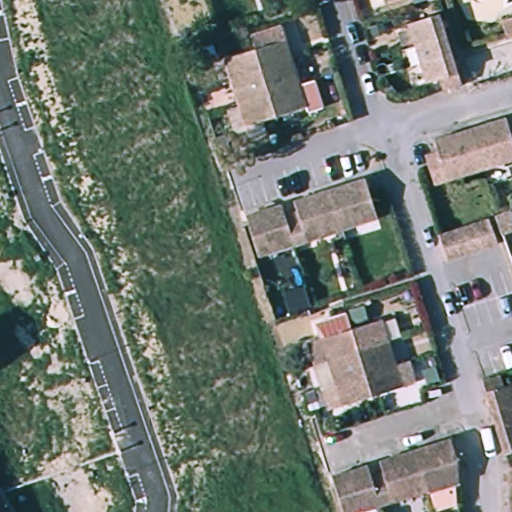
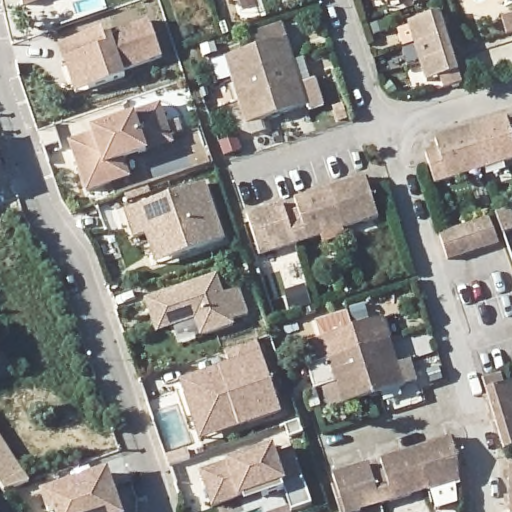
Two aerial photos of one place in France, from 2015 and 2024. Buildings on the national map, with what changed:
unchanged [(23,0),(41,0),(25,5),(23,0)]
unchanged [(445,34),(449,50),(457,77),(435,83),(431,70),(422,74),(418,59),(413,44),(406,19),(437,9),(445,34)]
unchanged [(501,13),(512,10),(512,29),(506,30),(501,13)]
new [(66,60),(61,45),(104,30),(106,37),(152,21),(165,58),(126,71),(128,77),(91,90),(78,94),(66,60)]
unchanged [(295,58),(303,82),(310,106),(281,114),(278,115),(272,117),(247,124),(240,101),(233,76),(226,54),(258,45),(289,36),(295,58)]
new [(114,184),(89,193),(72,144),(96,136),(94,131),(136,117),(135,116),(162,106),(173,137),(175,144),(149,153),(126,161),(132,178),(114,184)]
unchanged [(485,166),(435,180),(426,150),(441,146),(438,135),(473,126),(509,116),(512,129),(512,159),(485,166)]
unchanged [(376,192),(384,219),(351,228),(305,241),(259,255),(249,225),(261,222),(258,209),(293,200),(296,212),(307,209),(303,196),(338,186),(372,176),(376,192)]
new [(150,235),(137,239),(128,212),(208,185),(228,242),(176,259),(160,265),(150,235)]
unchanged [(498,241),(484,245),(472,248),(459,252),(448,256),(441,231),(453,228),(464,224),(477,221),(491,217),(498,241)]
new [(235,328),(200,338),(195,321),(155,334),(145,300),(219,275),(225,294),(242,290),(250,315),(233,320),(235,328)]
unchanged [(319,358),(313,335),(327,330),(359,321),(389,313),(396,336),(403,359),(404,363),(409,382),(380,391),(369,394),(347,400),(341,377),(326,381),(319,358)]
new [(229,364),(225,352),(258,341),(263,353),(283,415),(240,429),(200,441),(180,381),(218,368),(229,364)]
unchanged [(498,426),(492,407),(483,374),(500,370),(504,383),(512,381),(512,447),(505,449),(498,426)]
unchanged [(439,500),(436,489),(386,503),(358,512),(341,512),(331,481),(343,478),(340,468),(373,458),(376,468),(388,464),(385,455),(423,444),(459,433),(466,455),(467,480),(463,481),(466,492),(439,500)]
new [(247,501),(217,512),(205,477),(221,472),(232,468),(277,452),(280,461),(297,455),(306,480),(286,487),(289,495),(267,502),(249,508),(247,501)]
unchanged [(506,489),(505,465),(512,464),(512,510),(508,510),(506,489)]
new [(40,493),(111,471),(124,512),(47,512),(40,493)]

